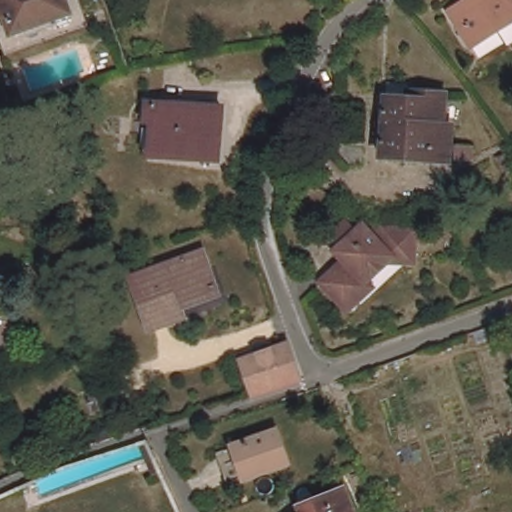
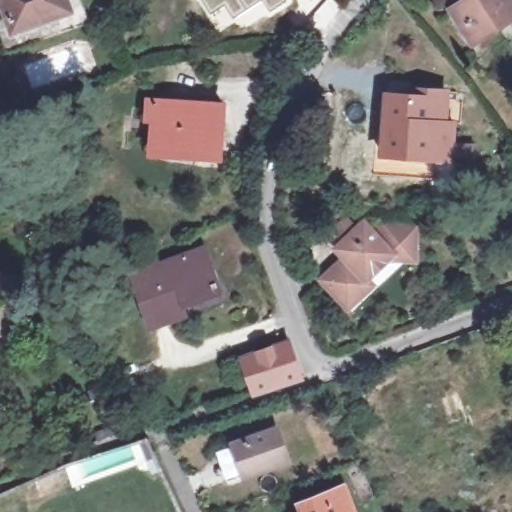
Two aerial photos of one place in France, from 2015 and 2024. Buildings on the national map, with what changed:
unchanged [(14,31),(3,0),(66,0),(70,10),(14,31)]
new [(262,4),(233,21),(224,7),(211,16),(201,0),(291,0),(269,15),(262,4)]
unchanged [(474,44),(451,9),(465,0),(512,0),(512,20),(474,44)]
unchanged [(445,124),(452,124),(450,157),(383,155),(384,141),(385,122),(386,96),(387,81),(411,82),(410,91),(447,92),(445,124)]
unchanged [(160,146),(161,120),(151,120),(152,100),(227,105),(225,157),(201,156),(201,150),(160,146)]
unchanged [(476,145),(475,157),(459,157),(459,144),(476,145)]
unchanged [(512,160),(512,167),(506,169),(500,156),(509,152),(512,160)]
unchanged [(377,231),(382,228),(420,230),(420,258),(395,259),(369,283),(369,296),(355,307),(330,280),(354,259),(335,238),(352,221),(364,232),(372,225),(377,231)]
unchanged [(187,301),(192,317),(155,331),(137,277),(209,250),(223,290),(217,291),(217,289),(187,301)]
unchanged [(247,355),(292,338),(305,374),(257,389),(247,355)]
unchanged [(226,451),(244,444),(285,430),(297,461),(255,475),(237,482),(226,451)]
unchanged [(307,505),(352,486),(363,512),(310,512),(307,505)]

